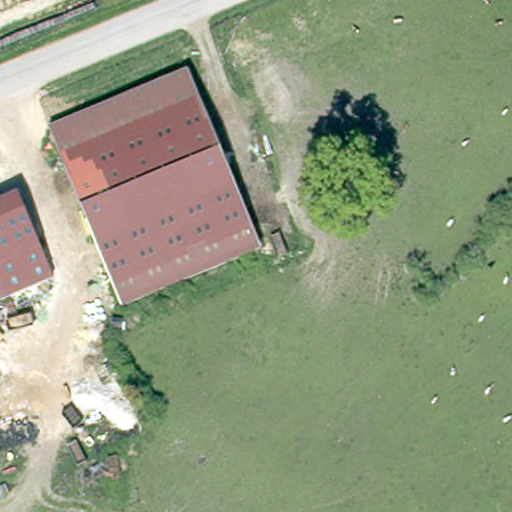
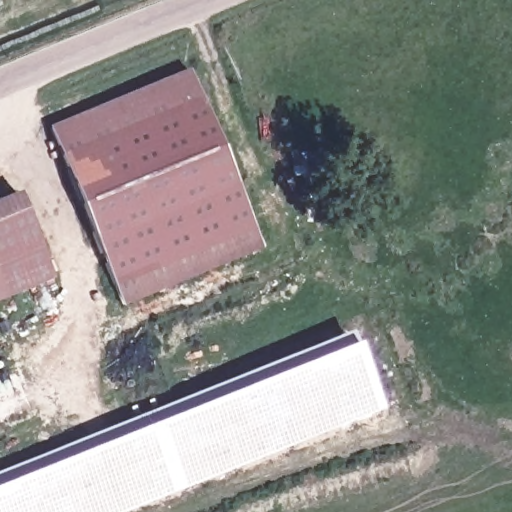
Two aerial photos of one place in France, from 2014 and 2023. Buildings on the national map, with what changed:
unchanged [(194,70),(267,246),(127,304),(55,128),(194,70)]
unchanged [(19,193),(53,278),(10,299),(0,276),(0,200),(19,193)]
unchanged [(10,300),(0,304),(0,276),(10,300)]
new [(348,333),(378,410),(123,512),(0,512),(0,472),(348,333)]

